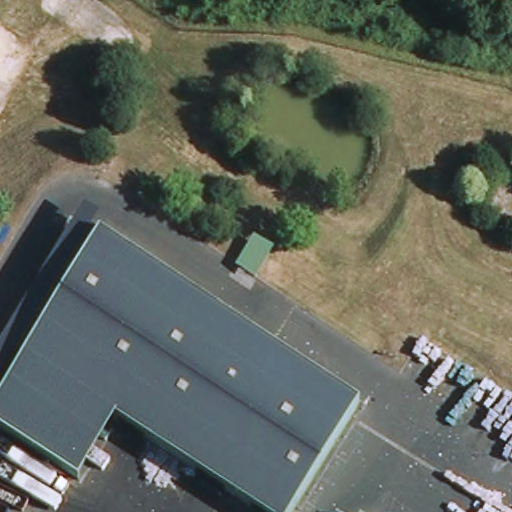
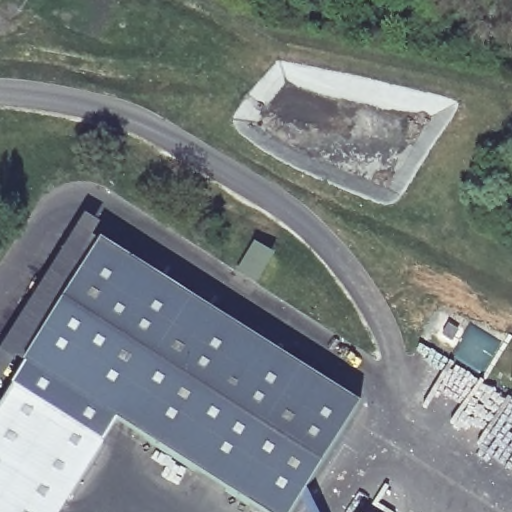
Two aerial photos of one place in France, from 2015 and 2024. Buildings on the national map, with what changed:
unchanged [(93,232),(0,376),(0,354),(83,225),(93,232)]
unchanged [(356,406),(289,512),(261,512),(115,420),(25,362),(100,244),(356,406)]
unchanged [(115,420),(77,478),(0,429),(0,403),(25,362),(115,420)]
new [(77,478),(82,481),(62,512),(0,512),(0,429),(77,478)]

